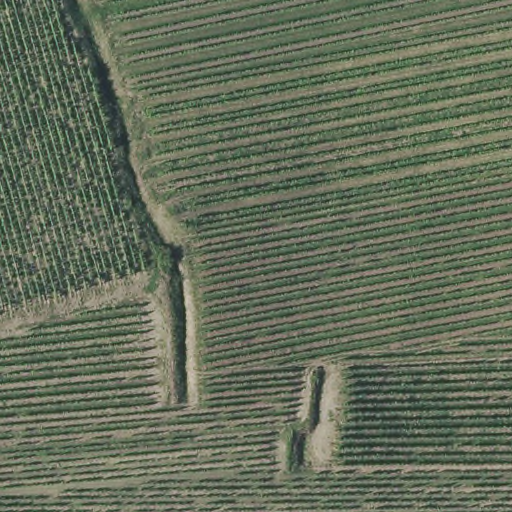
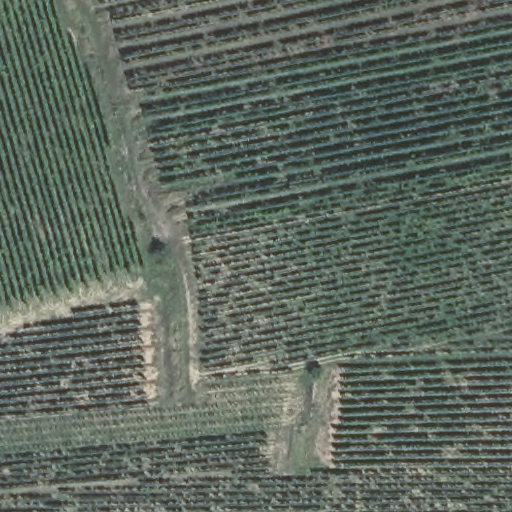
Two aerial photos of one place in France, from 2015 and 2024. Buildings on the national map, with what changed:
[]

